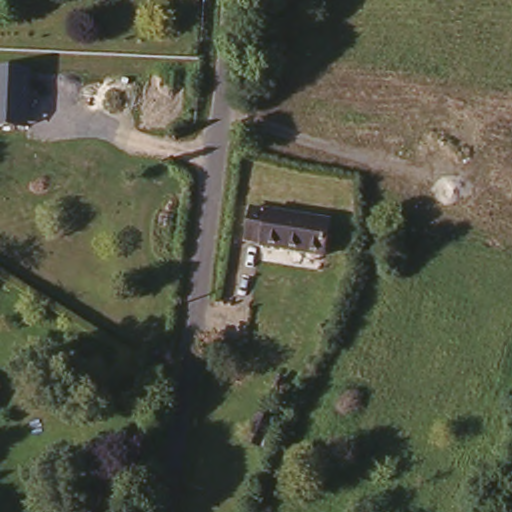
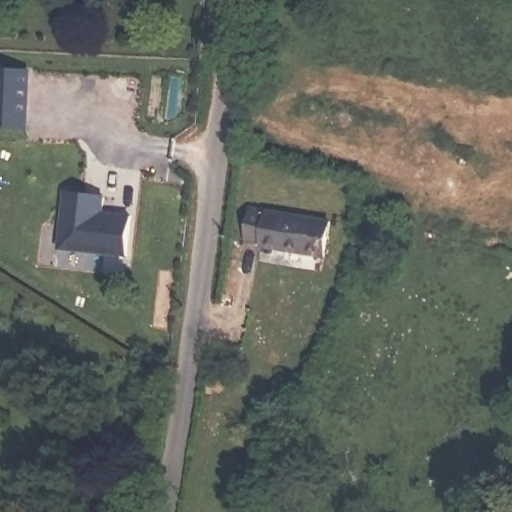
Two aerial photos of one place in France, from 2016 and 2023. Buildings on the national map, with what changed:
unchanged [(29,127),(0,126),(0,69),(31,69),(29,127)]
new [(102,194),(101,215),(127,215),(126,253),(55,250),(58,190),(102,194)]
unchanged [(338,219),(328,253),(268,237),(268,232),(253,227),(261,198),(338,219)]
unchanged [(0,398),(0,385),(6,388),(0,398)]
unchanged [(292,405),(283,428),(275,425),(284,402),(292,405)]

